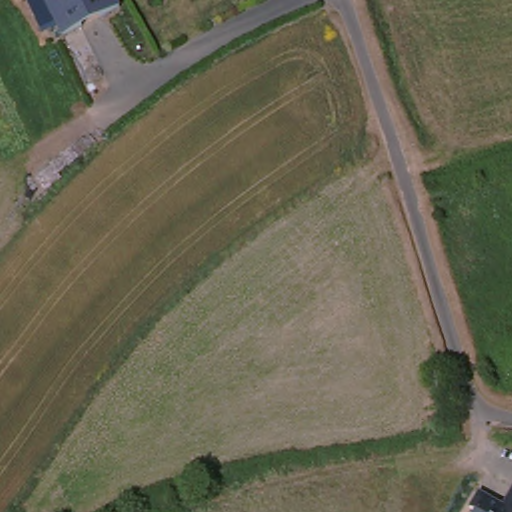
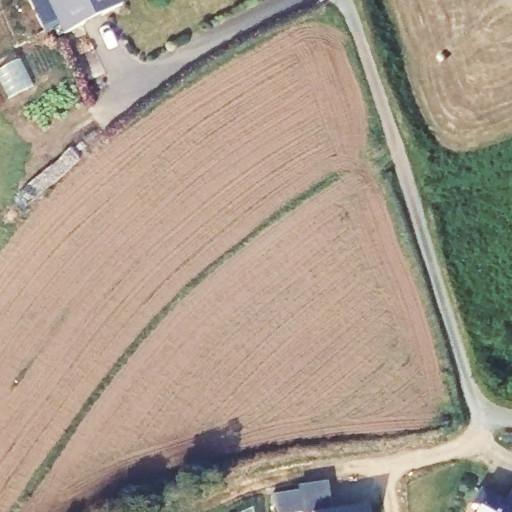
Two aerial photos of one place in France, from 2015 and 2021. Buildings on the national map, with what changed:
unchanged [(118,6),(60,34),(43,0),(114,0),(118,6)]
new [(304,512),(301,483),(329,481),(332,511),(369,507),(369,512),(304,512)]
new [(302,510),(282,512),(277,512),(275,492),(299,489),(302,510)]
unchanged [(475,512),(469,509),(481,489),(507,505),(512,495),(512,512),(475,512)]

